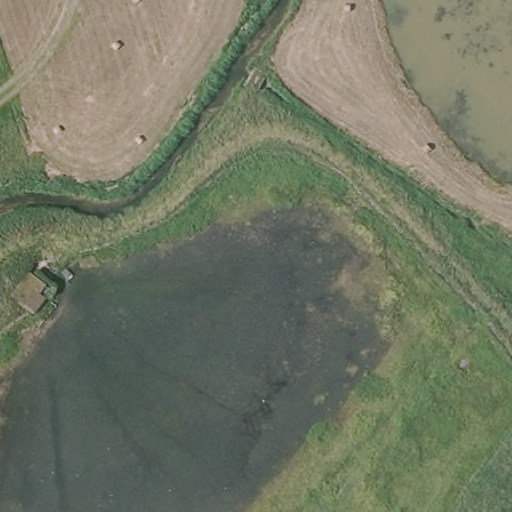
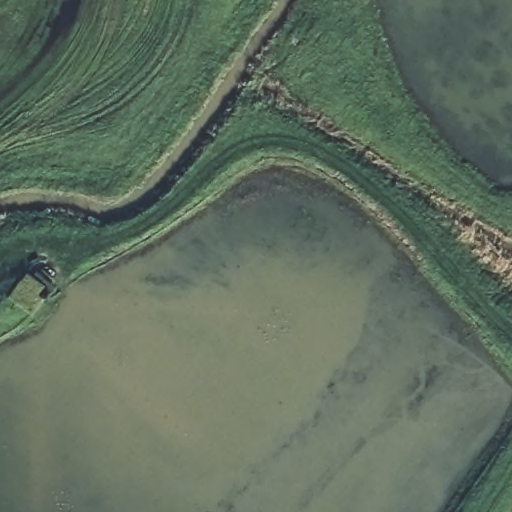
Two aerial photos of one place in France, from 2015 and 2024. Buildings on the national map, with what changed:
unchanged [(23,272),(47,287),(31,312),(7,296),(23,272)]

